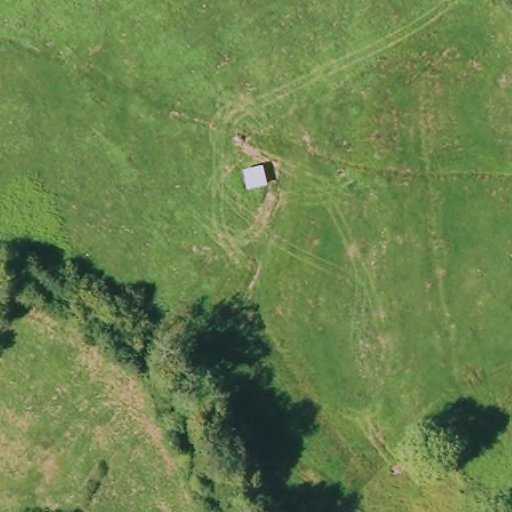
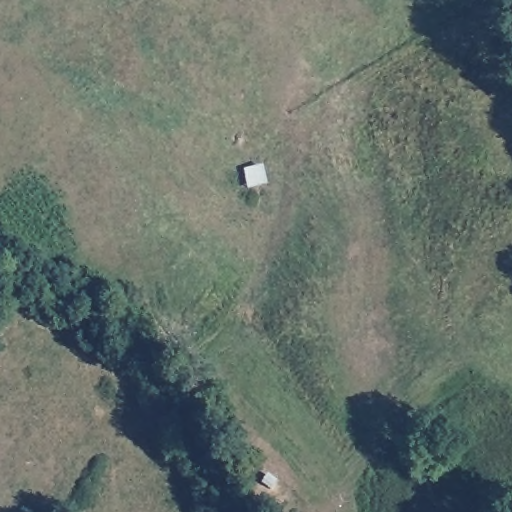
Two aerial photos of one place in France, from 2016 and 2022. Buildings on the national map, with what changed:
unchanged [(267,164),(272,189),(248,193),(247,168),(267,164)]

